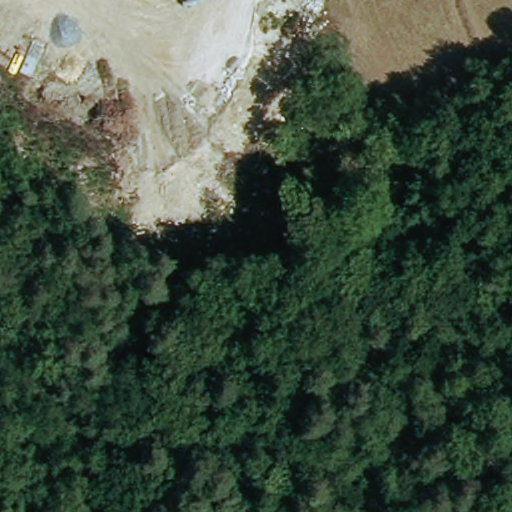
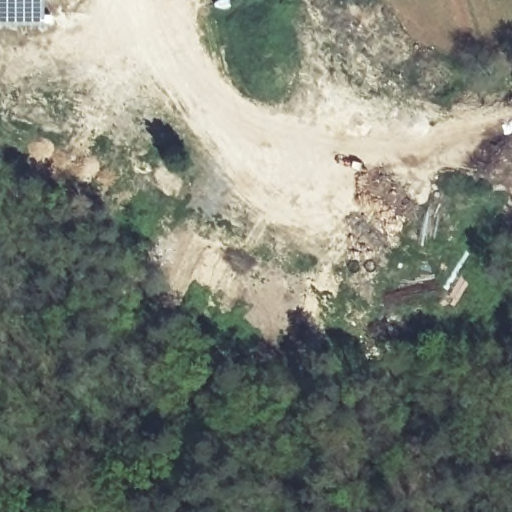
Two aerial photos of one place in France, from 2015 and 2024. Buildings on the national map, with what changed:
new [(43,25),(0,25),(0,0),(43,0),(43,25)]

